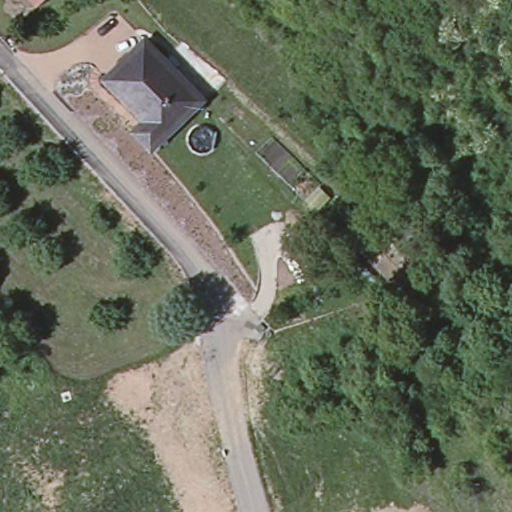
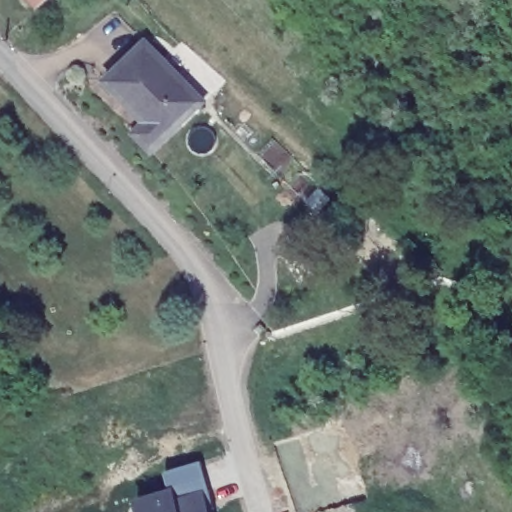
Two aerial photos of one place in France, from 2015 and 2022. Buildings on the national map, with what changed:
unchanged [(29,12),(18,0),(43,0),(29,12)]
unchanged [(202,100),(150,150),(134,131),(145,120),(104,79),(145,40),(202,100)]
new [(214,508),(210,510),(210,512),(138,512),(135,498),(169,488),(164,471),(200,461),(214,508)]

